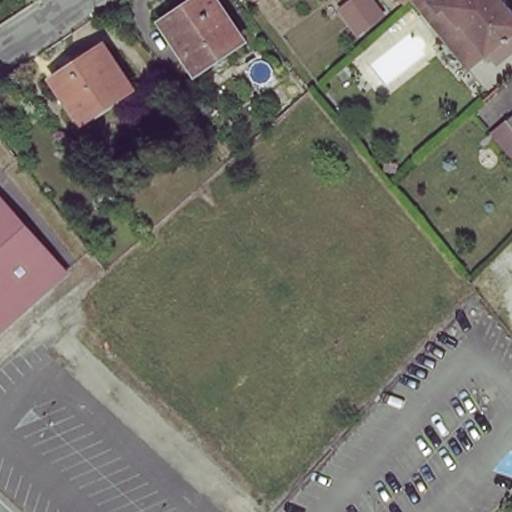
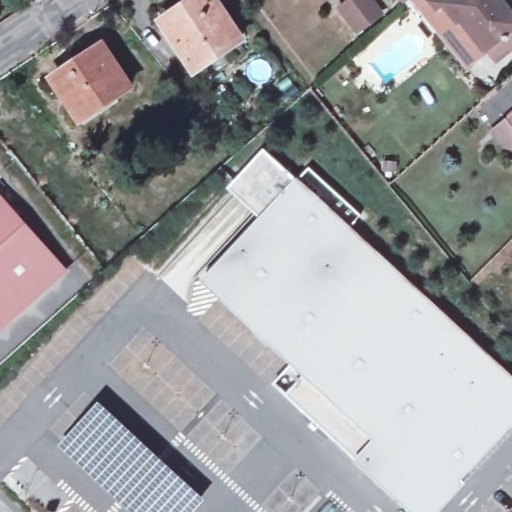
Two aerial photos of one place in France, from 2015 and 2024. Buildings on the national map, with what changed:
unchanged [(195,0),(216,0),(243,40),(197,71),(163,22),(195,0)]
unchanged [(380,8),(352,31),(336,2),(338,0),(373,0),(380,8)]
unchanged [(507,38),(512,43),(512,53),(497,64),(487,55),(460,68),(415,4),(419,0),(502,0),(512,11),(512,34),(507,38)]
unchanged [(105,45),(133,88),(85,120),(68,96),(72,93),(60,75),(105,45)]
unchanged [(491,127),(512,106),(512,155),(491,127)]
new [(263,151),(293,181),(296,178),(512,379),(512,424),(461,481),(465,484),(439,512),(409,512),(354,461),(286,396),(302,374),(201,281),(260,218),(228,188),(263,151)]
unchanged [(0,196),(67,274),(0,333),(0,196)]

